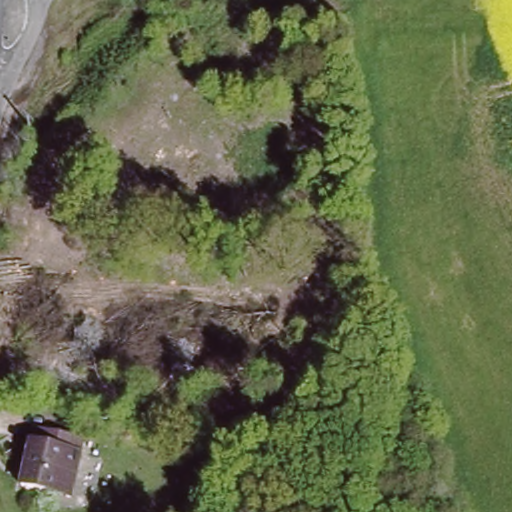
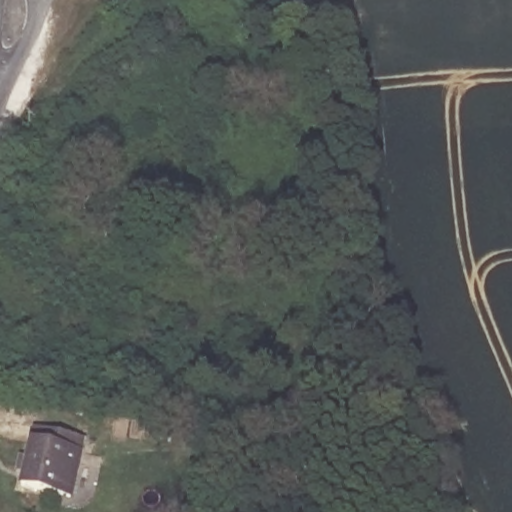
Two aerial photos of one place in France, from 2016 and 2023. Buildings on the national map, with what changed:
unchanged [(36,426),(82,434),(74,496),(25,489),(36,426)]

